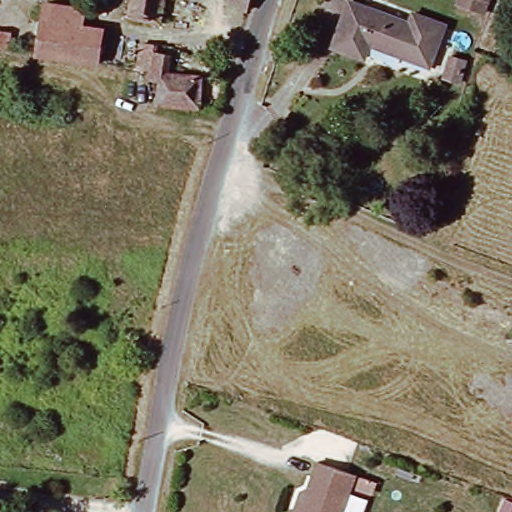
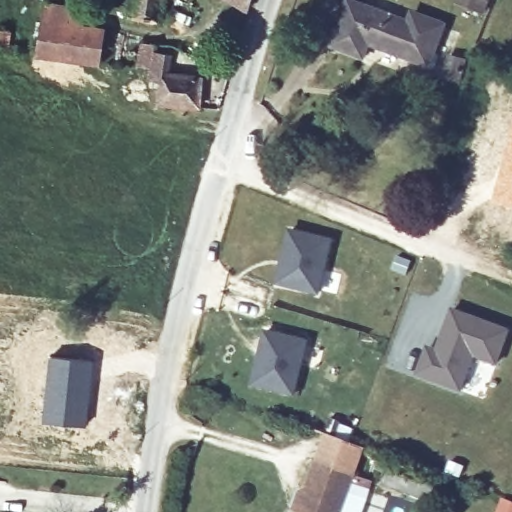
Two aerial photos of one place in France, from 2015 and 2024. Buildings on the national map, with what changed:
unchanged [(122,16),(124,9),(126,0),(160,0),(154,24),(122,16)]
unchanged [(250,0),(246,13),(225,0),(250,0)]
unchanged [(456,7),(459,0),(488,0),(485,8),(482,16),(473,13),(456,7)]
unchanged [(372,52),(366,64),(331,51),(348,5),(410,24),(412,19),(447,29),(435,70),(372,52)]
unchanged [(38,29),(41,9),(80,15),(77,34),(92,38),(99,39),(94,71),(85,69),(34,61),(38,29)]
unchanged [(9,31),(6,47),(0,46),(0,30),(9,31)]
unchanged [(199,111),(158,107),(161,85),(149,84),(150,73),(136,71),(137,60),(150,61),(152,56),(172,59),(170,77),(202,80),(199,111)]
unchanged [(443,78),(450,58),(469,65),(461,85),(443,78)]
new [(512,210),(491,204),(512,114),(512,210)]
new [(333,239),(319,298),(275,286),(288,228),(333,239)]
new [(425,344),(435,348),(450,307),(511,329),(497,367),(477,359),(461,394),(412,376),(425,344)]
new [(309,339),(295,397),(250,385),(262,328),(309,339)]
new [(49,356),(92,360),(85,426),(41,422),(49,356)]
unchanged [(321,464),(358,477),(350,501),(311,489),(321,464)]
unchanged [(346,512),(299,512),(298,512),(305,493),(311,489),(350,501),(346,512)]

